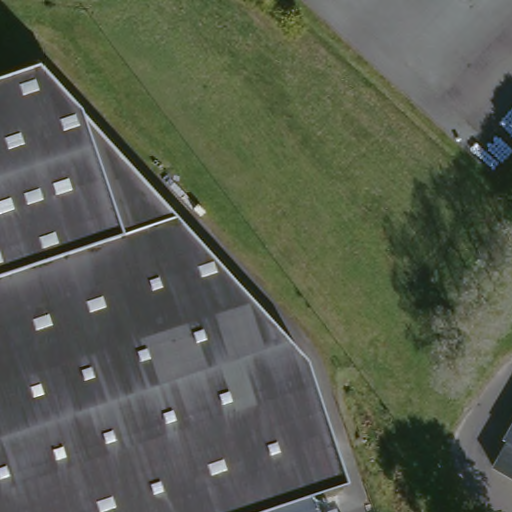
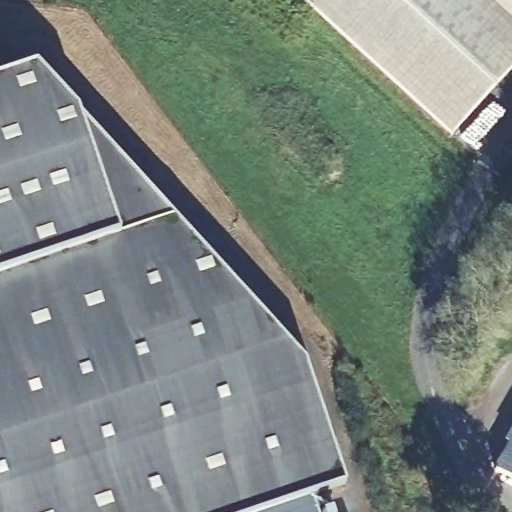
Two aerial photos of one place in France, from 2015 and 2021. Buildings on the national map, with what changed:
new [(512,0),(512,71),(451,137),(302,0),(512,0)]
unchanged [(41,63),(84,110),(309,362),(345,481),(312,491),(319,512),(0,512),(0,76),(41,63)]
unchanged [(512,443),(512,480),(498,471),(512,443)]

